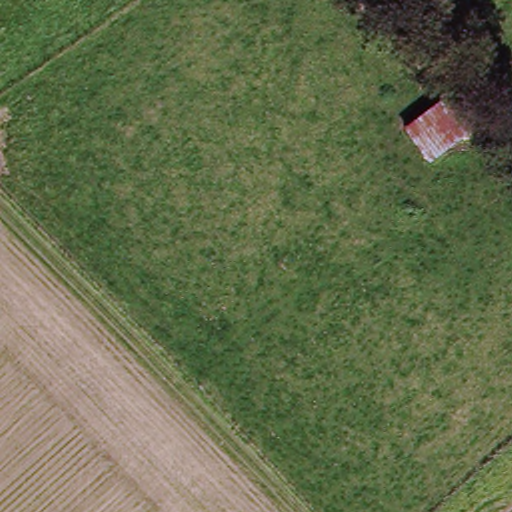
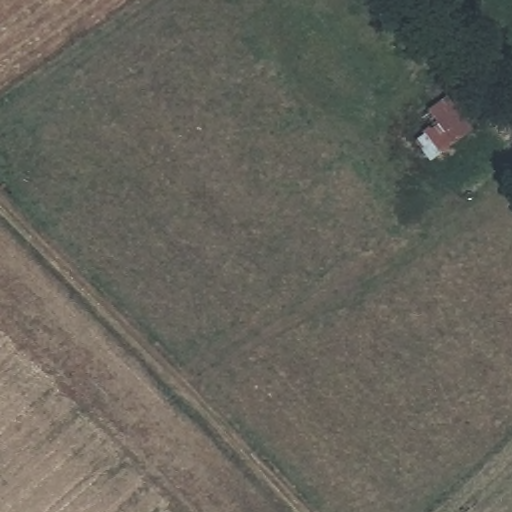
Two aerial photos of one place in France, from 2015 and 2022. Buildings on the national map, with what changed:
unchanged [(432,166),(403,132),(448,97),(476,131),(432,166)]

